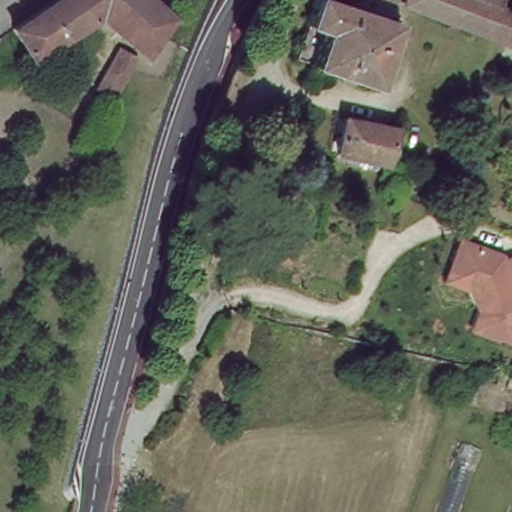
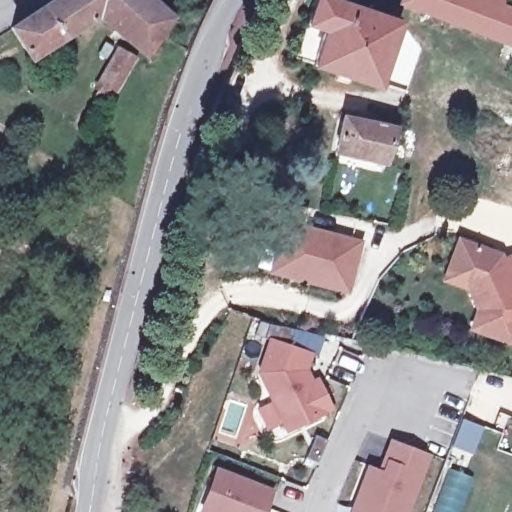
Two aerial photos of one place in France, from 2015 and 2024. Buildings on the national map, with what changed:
unchanged [(103,17),(32,64),(10,31),(58,0),(150,0),(176,20),(161,42),(151,57),(103,17)]
unchanged [(396,21),(375,84),(311,63),(322,30),(304,25),(305,23),(314,0),(333,0),(396,21)]
unchanged [(512,9),(512,60),(501,56),(506,42),(412,0),(499,0),(498,3),(512,9)]
unchanged [(86,91),(123,54),(135,66),(98,102),(86,91)]
unchanged [(341,119),(394,130),(383,162),(354,156),(333,151),(341,119)]
new [(280,218),(363,241),(346,295),(265,272),(280,218)]
unchanged [(500,250),(503,255),(512,252),(512,345),(468,332),(475,311),(467,290),(442,281),(455,234),(500,250)]
new [(261,375),(274,339),(267,337),(273,323),(298,331),(291,349),(313,357),(305,381),(308,389),(319,383),(333,412),(289,433),(285,424),(269,432),(259,411),(275,404),(261,375)]
new [(461,419),(484,428),(473,455),(450,446),(461,419)]
new [(378,468),(389,438),(433,455),(411,512),(346,512),(366,463),(378,468)]
new [(275,493),(267,512),(203,512),(220,471),(275,493)]

